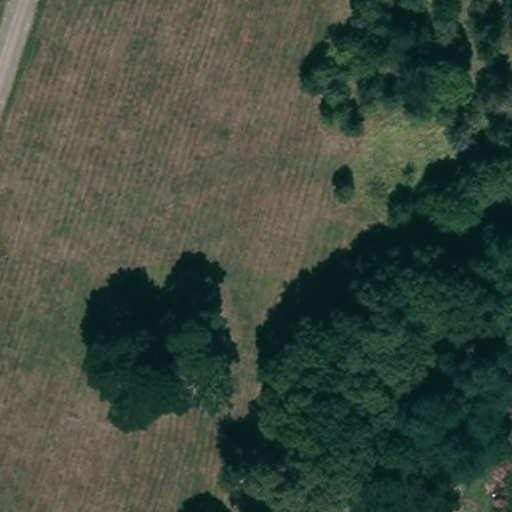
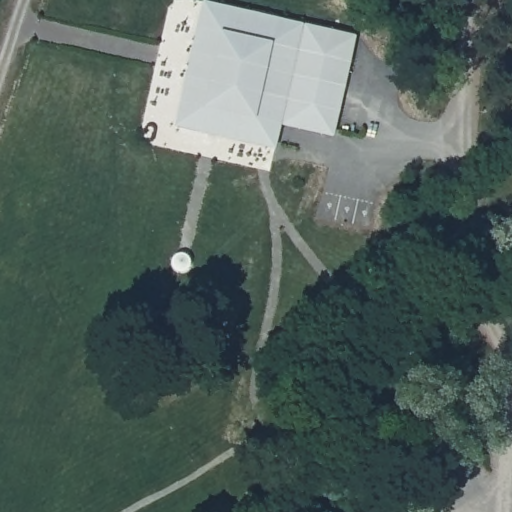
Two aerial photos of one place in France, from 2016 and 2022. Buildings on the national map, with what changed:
new [(204,0),(207,0),(357,33),(335,135),(283,124),(277,147),(178,125),(204,0)]

